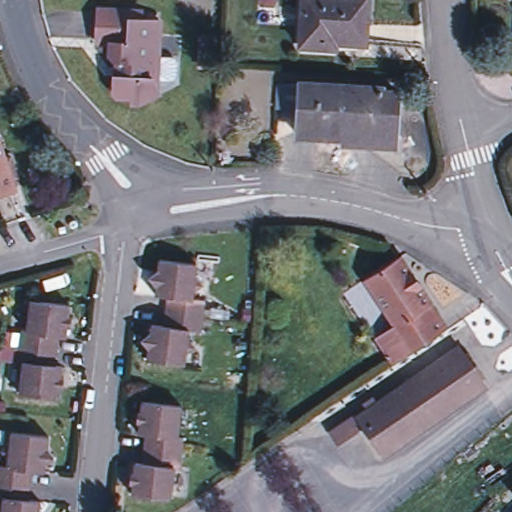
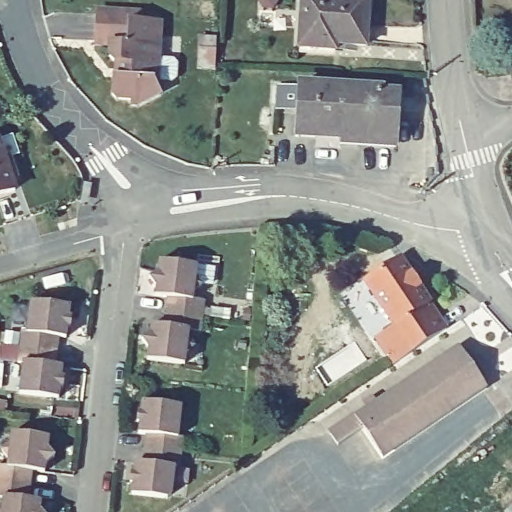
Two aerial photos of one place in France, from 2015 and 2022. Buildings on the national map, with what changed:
unchanged [(335,44),(335,50),(300,49),(302,0),(368,0),(365,46),(335,44)]
unchanged [(115,43),(101,42),(102,9),(147,11),(146,20),(165,22),(163,56),(159,61),(158,79),(165,93),(144,104),(137,103),(121,96),(117,90),(118,75),(123,75),(124,60),(119,59),(115,54),(115,43)]
unchanged [(386,86),(386,89),(401,91),(399,135),(390,135),(390,140),(365,138),(365,134),(301,129),(303,100),(281,98),(282,80),(386,86)]
unchanged [(11,154),(15,164),(8,166),(15,189),(0,194),(0,143),(5,156),(11,154)]
unchanged [(405,252),(451,323),(392,363),(374,336),(393,324),(362,280),(405,252)]
unchanged [(170,293),(158,292),(158,282),(152,274),(161,266),(162,257),(201,261),(200,271),(206,279),(198,286),(197,294),(208,296),(206,312),(168,307),(170,293)]
unchanged [(71,314),(75,315),(74,324),(70,324),(69,334),(61,334),(60,348),(22,344),(24,329),(30,329),(33,299),(72,303),(71,314)]
unchanged [(166,321),(168,307),(206,312),(205,328),(192,326),(191,333),(198,341),(190,347),(189,359),(150,355),(151,344),(144,334),(153,327),(154,320),(166,321)]
unchanged [(330,429),(355,412),(459,342),(466,352),(470,349),(485,371),(480,374),(487,384),(382,454),(363,424),(338,442),(330,429)]
unchanged [(66,384),(62,384),(61,395),(22,391),(25,359),(20,359),(22,344),(60,348),(58,363),(65,363),(63,374),(67,374),(66,384)]
unchanged [(181,401),(178,432),(183,433),(181,448),(145,444),(146,431),(139,430),(140,419),(137,419),(137,409),(141,409),(142,398),(181,401)]
unchanged [(10,456),(5,448),(13,440),(13,429),(52,434),(51,446),(58,454),(50,461),(49,469),(37,468),(35,482),(0,478),(0,462),(10,463),(10,456)]
unchanged [(131,469),(135,469),(136,459),(143,459),(145,444),(181,448),(180,463),(175,463),(173,493),(133,490),(135,479),(130,479),(131,469)]
unchanged [(34,496),(45,497),(44,506),(49,512),(0,512),(0,507),(5,504),(6,495),(0,494),(0,478),(35,482),(34,496)]

